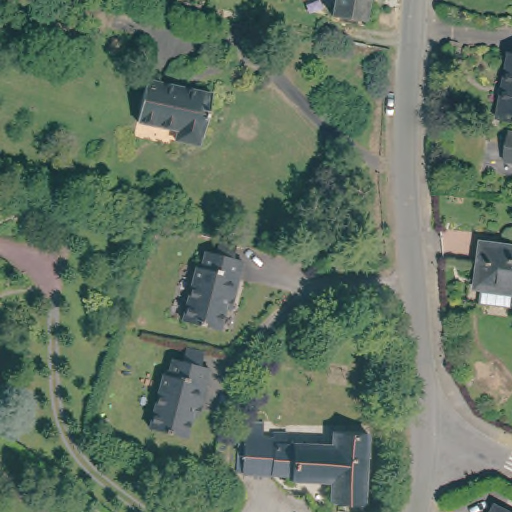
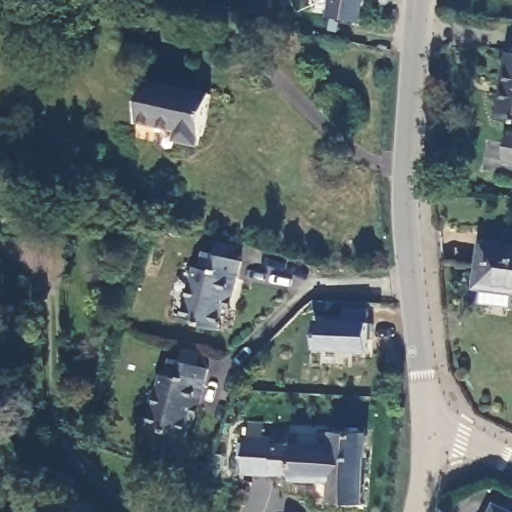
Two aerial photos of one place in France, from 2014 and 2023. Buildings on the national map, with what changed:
unchanged [(364,23),(330,16),(333,0),(368,0),(364,23)]
unchanged [(495,124),(508,59),(512,59),(512,127),(495,124)]
unchanged [(215,95),(205,145),(180,139),(181,131),(141,123),(150,80),(215,95)]
unchanged [(503,165),(507,136),(512,137),(512,167),(503,165)]
unchanged [(512,246),(512,291),(480,287),(487,242),(512,246)]
unchanged [(245,282),(241,281),(236,300),(234,299),(224,333),(190,322),(204,271),(209,272),(212,256),(221,258),(225,245),(243,249),(240,263),(250,266),(245,282)]
new [(315,321),(343,321),(345,308),(368,309),(370,323),(368,352),(315,349),(315,321)]
unchanged [(190,417),(184,439),(146,429),(162,376),(166,377),(171,362),(180,364),(184,350),(201,354),(199,368),(207,370),(203,388),(195,419),(190,417)]
unchanged [(276,441),(277,429),(291,430),(290,441),(336,444),(337,431),(371,433),(368,505),(333,503),(335,483),(295,479),(295,477),(274,475),(276,441)]
unchanged [(274,475),(245,473),(248,438),(276,441),(274,475)]

